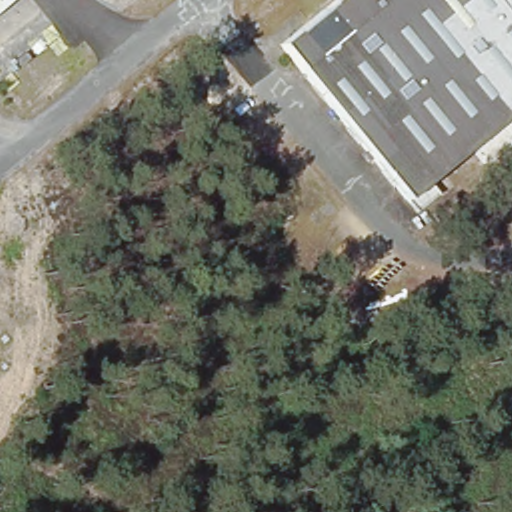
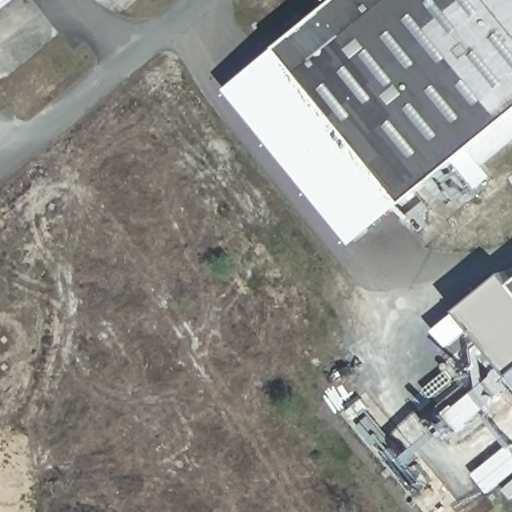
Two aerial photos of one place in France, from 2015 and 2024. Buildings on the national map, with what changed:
unchanged [(0,11),(0,0),(14,0),(0,11)]
unchanged [(512,111),(408,192),(296,53),(288,42),(341,0),(512,0),(512,111)]
new [(288,42),(296,53),(408,192),(413,197),(354,243),(230,90),(288,42)]
new [(507,270),(512,277),(512,373),(460,308),(507,270)]
new [(474,474),(510,445),(512,448),(512,474),(489,492),(474,474)]

